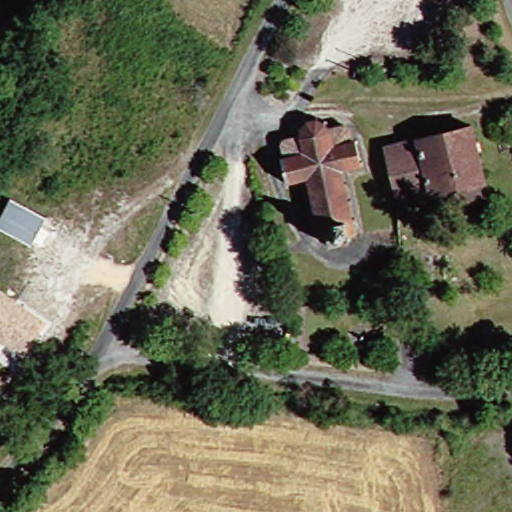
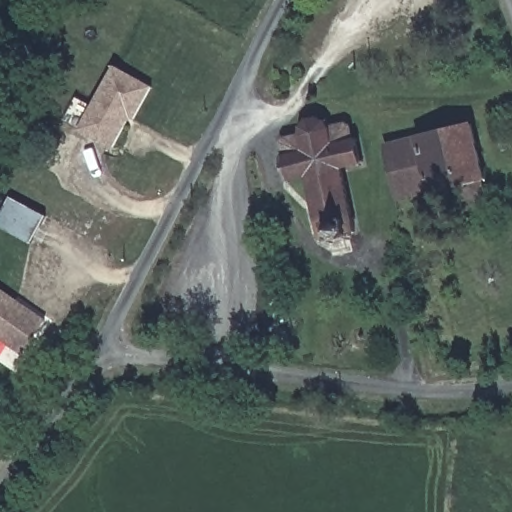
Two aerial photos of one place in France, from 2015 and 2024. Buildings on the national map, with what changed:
new [(114,150),(78,132),(112,65),(153,89),(135,121),(131,119),(114,150)]
unchanged [(322,239),(315,239),(306,181),(285,185),(277,143),(293,141),(296,134),(309,126),(321,128),(330,133),(351,128),(357,168),(336,174),(349,235),(344,238),(345,245),(324,248),(322,239)]
unchanged [(440,205),(436,188),(390,199),(378,145),(462,128),(472,182),(477,201),(440,205)]
unchanged [(47,322),(24,358),(0,341),(0,288),(47,322)]

